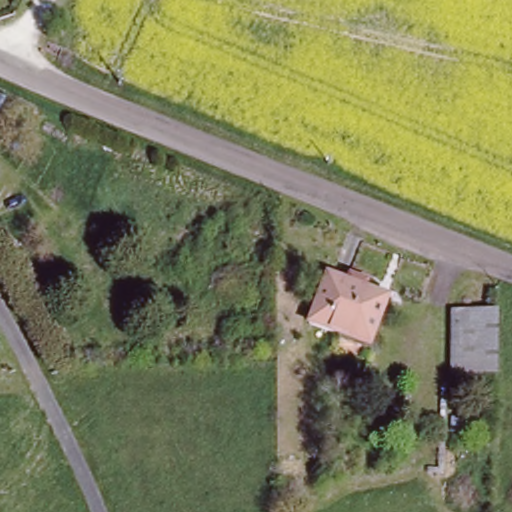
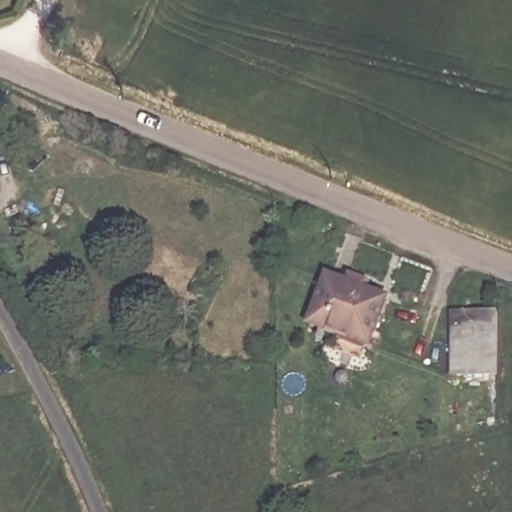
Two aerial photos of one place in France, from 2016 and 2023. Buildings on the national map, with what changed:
unchanged [(307,323),(327,277),(386,302),(366,348),(307,323)]
unchanged [(497,377),(447,376),(448,308),(498,310),(497,377)]

